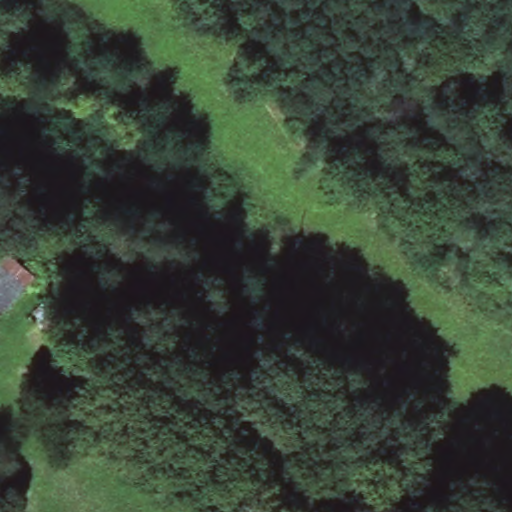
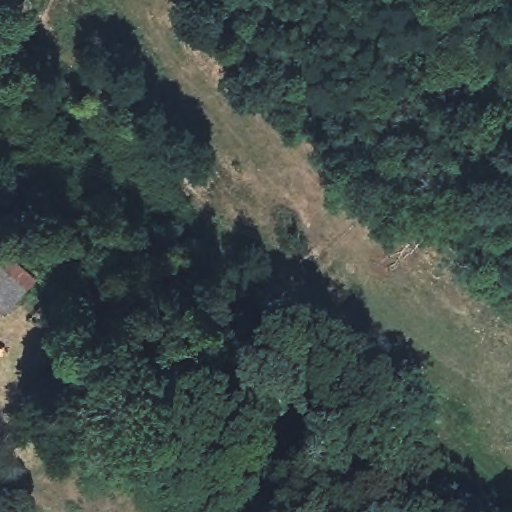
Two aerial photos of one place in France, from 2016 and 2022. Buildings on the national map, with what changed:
unchanged [(41,275),(8,314),(0,306),(0,255),(6,247),(41,275)]

